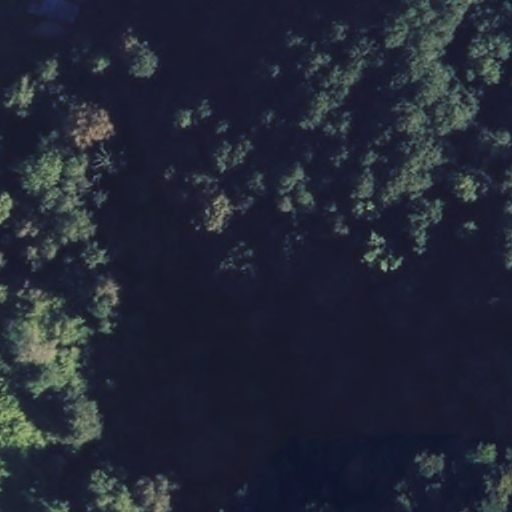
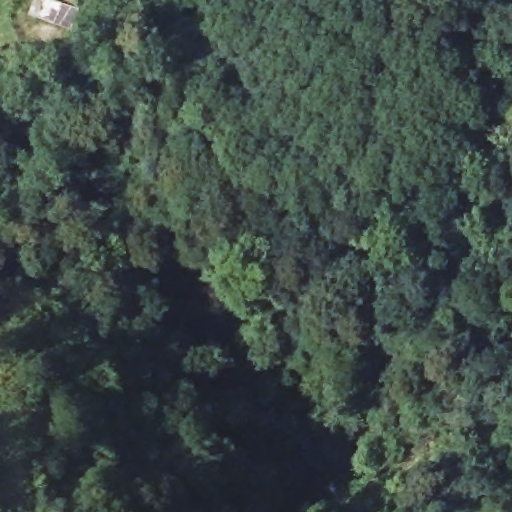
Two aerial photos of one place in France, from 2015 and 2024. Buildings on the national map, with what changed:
unchanged [(72,17),(65,39),(22,24),(34,0),(36,0),(72,17)]

